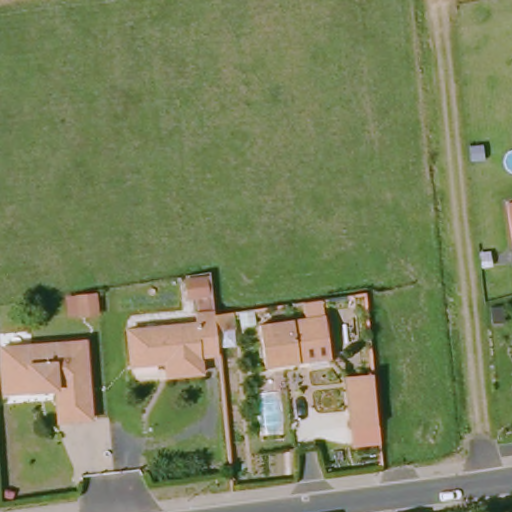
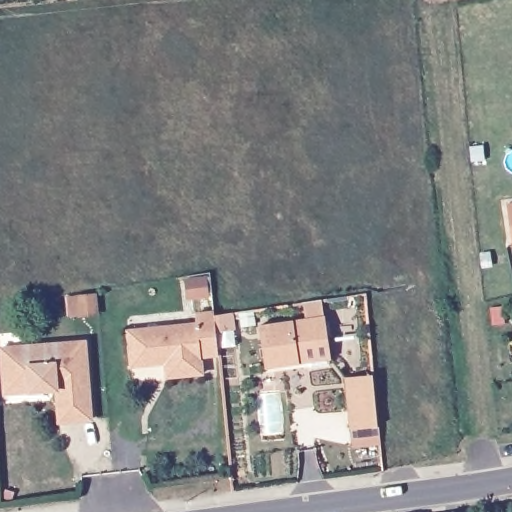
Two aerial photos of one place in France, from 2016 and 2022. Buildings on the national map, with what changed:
unchanged [(508,242),(500,201),(512,198),(512,242),(508,242)]
unchanged [(197,272),(205,272),(206,295),(183,297),(181,275),(197,272)]
unchanged [(90,291),(90,311),(72,310),(73,291),(90,291)]
unchanged [(255,366),(251,322),(298,319),(297,303),(317,302),(321,352),(321,361),(320,361),(316,366),(299,367),(296,362),(288,363),(255,366)]
unchanged [(194,362),(195,379),(159,381),(158,366),(124,367),(122,330),(189,326),(189,314),(211,312),(234,310),(236,329),(212,331),(214,361),(194,362)]
unchanged [(81,343),(87,421),(54,422),(52,393),(6,396),(3,348),(81,343)]
unchanged [(344,427),(339,377),(364,374),(368,426),(344,427)]
unchanged [(407,511),(436,507),(437,512),(407,512),(407,511)]

